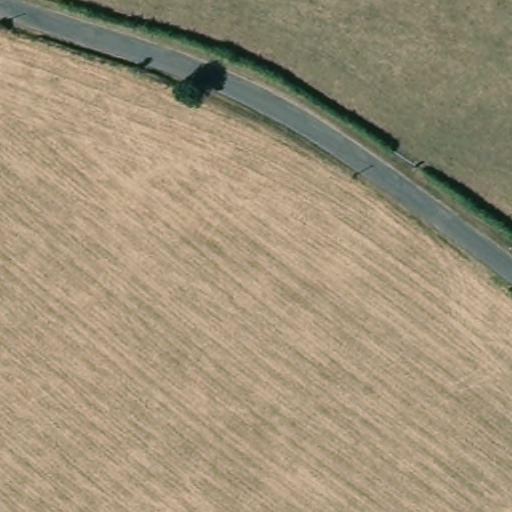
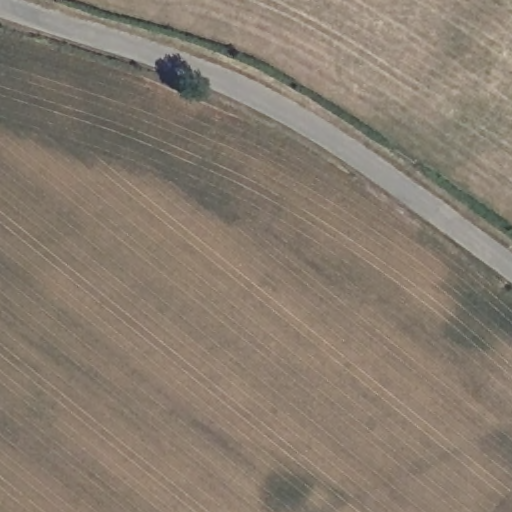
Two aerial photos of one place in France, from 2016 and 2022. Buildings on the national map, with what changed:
[]

